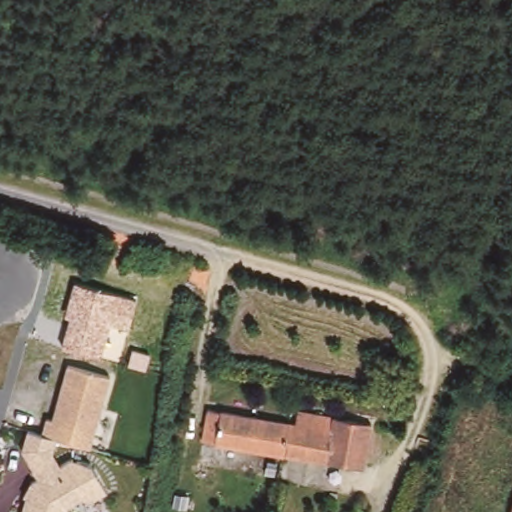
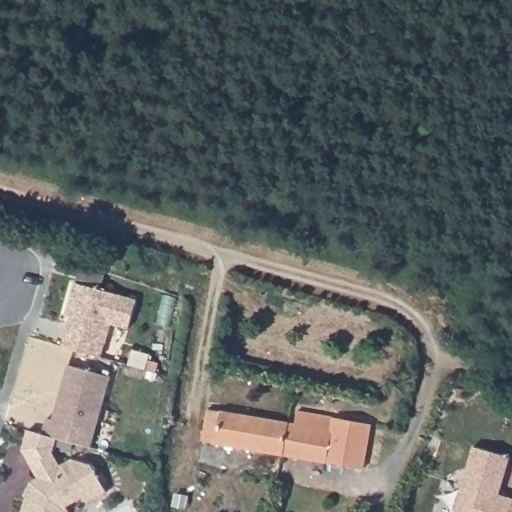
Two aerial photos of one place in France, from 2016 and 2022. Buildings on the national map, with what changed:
unchanged [(68,319),(63,317),(73,282),(136,300),(128,330),(110,325),(101,353),(62,343),(68,319)]
unchanged [(83,497),(67,506),(66,510),(70,512),(20,512),(29,479),(36,478),(21,448),(26,430),(41,433),(45,417),(52,418),(68,364),(112,376),(92,449),(56,439),(54,449),(61,464),(73,458),(94,464),(108,493),(92,503),(83,497)]
unchanged [(204,442),(210,411),(298,426),(300,413),(372,425),(364,471),(204,442)]
new [(510,457),(500,494),(512,498),(512,506),(510,512),(454,512),(473,446),(510,457)]
unchanged [(510,512),(512,506),(512,512),(510,512)]

